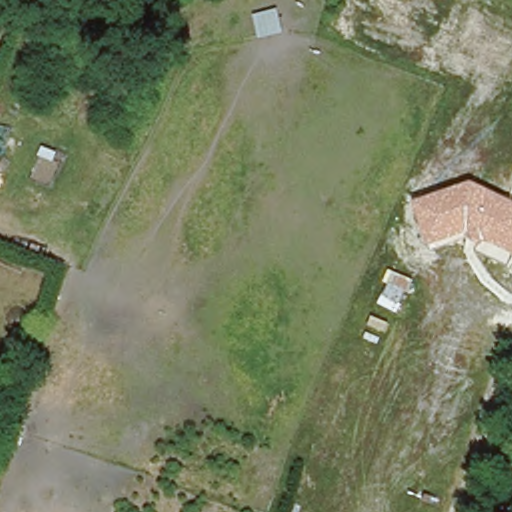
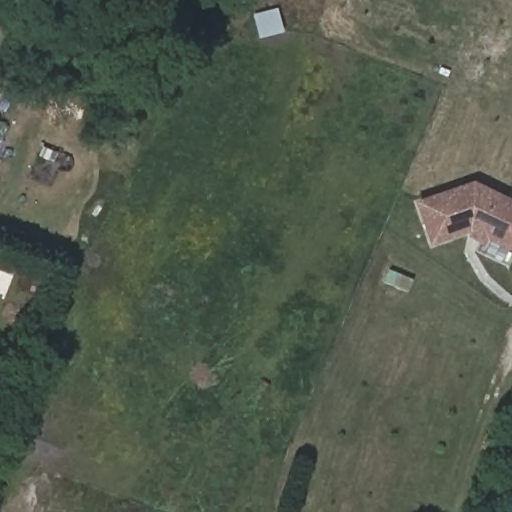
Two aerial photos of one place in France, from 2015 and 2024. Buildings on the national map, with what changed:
unchanged [(486,240),(483,246),(468,236),(472,230),(430,247),(417,199),(473,181),(512,198),(512,252),(486,240)]

